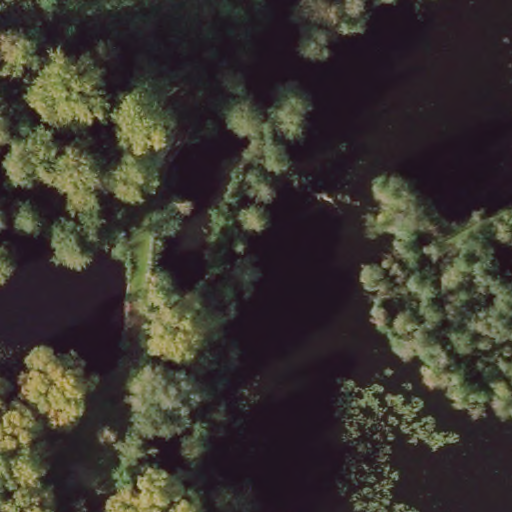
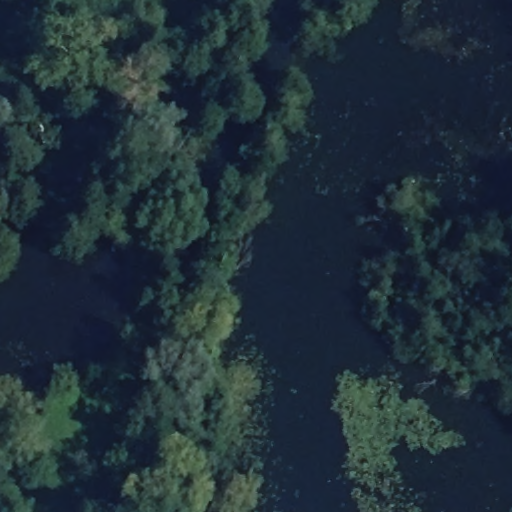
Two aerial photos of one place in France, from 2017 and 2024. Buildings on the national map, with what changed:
unchanged [(15,495),(16,512),(5,512),(3,496),(15,495)]

